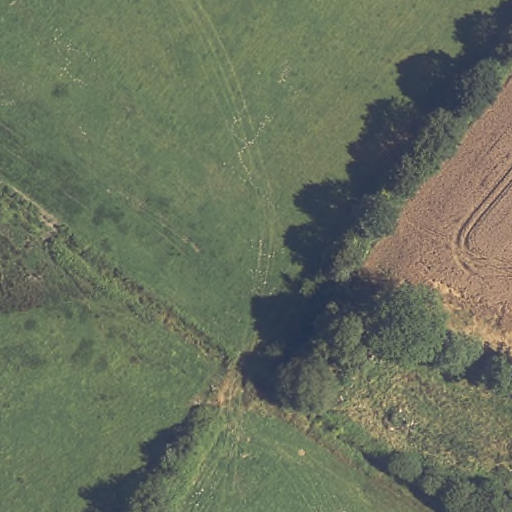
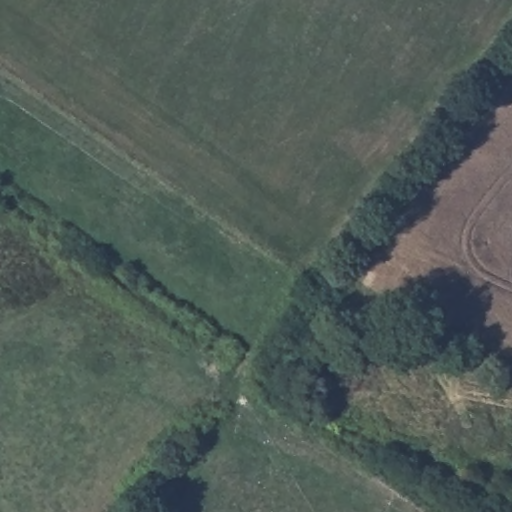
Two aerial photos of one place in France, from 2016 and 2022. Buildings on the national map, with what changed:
unchanged [(374,346),(343,396),(326,387),(359,337),(374,346)]

